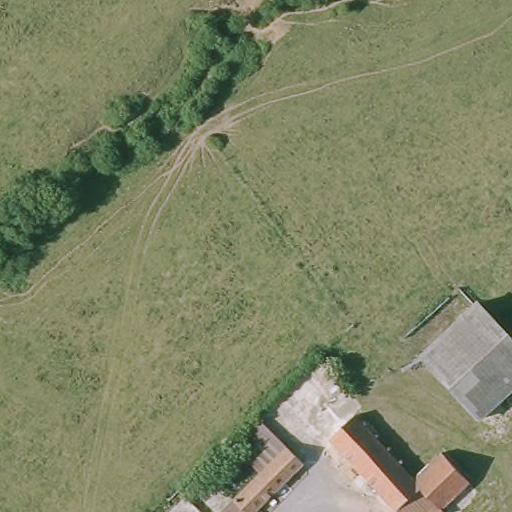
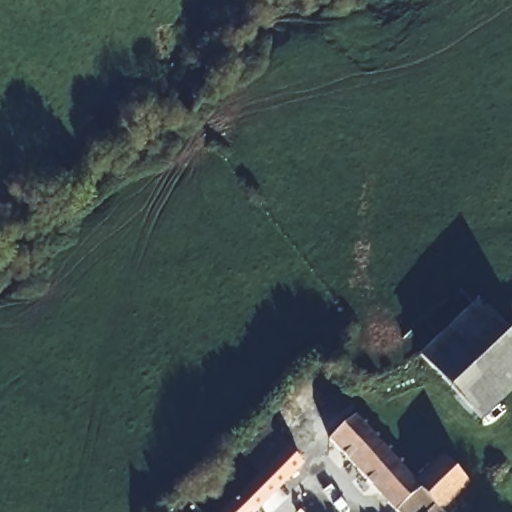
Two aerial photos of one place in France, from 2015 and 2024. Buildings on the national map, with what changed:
unchanged [(479,417),(418,353),(423,348),(474,300),(484,310),(512,339),(512,384),(479,417)]
unchanged [(235,503),(234,503),(226,495),(253,468),(227,438),(254,412),(296,458),(244,511),(245,512),(243,512),(235,503)]
unchanged [(432,512),(392,512),(324,437),(348,415),(408,478),(436,453),(463,483),(432,512)]
unchanged [(226,495),(234,503),(235,503),(243,512),(209,512),(226,495)]

